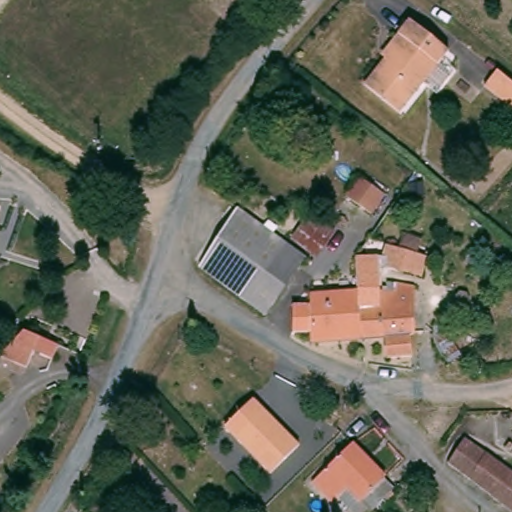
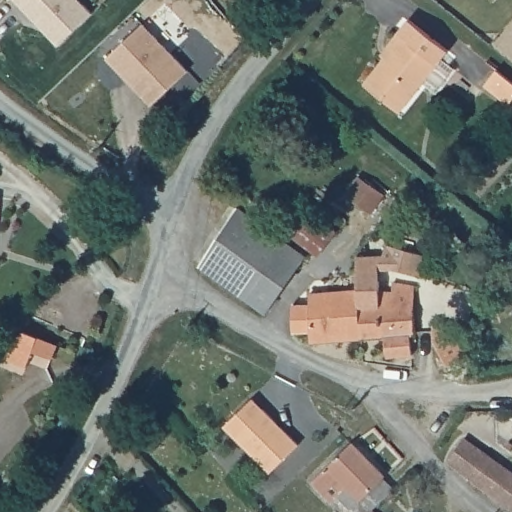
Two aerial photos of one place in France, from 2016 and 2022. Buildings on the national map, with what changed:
new [(89,10),(55,41),(16,0),(80,0),(89,10)]
unchanged [(398,35),(409,19),(453,52),(406,115),(368,86),(404,40),(398,35)]
new [(140,22),(184,69),(146,102),(103,55),(140,22)]
unchanged [(501,62),(512,71),(512,100),(487,81),(501,62)]
unchanged [(378,193),(360,214),(341,199),(352,173),(378,193)]
unchanged [(0,199),(0,195),(1,195),(0,199)]
unchanged [(276,237),(235,292),(203,268),(240,212),(276,237)]
unchanged [(336,235),(319,260),(292,241),(309,217),(336,235)]
unchanged [(288,246),(248,302),(235,292),(276,237),(288,246)]
unchanged [(414,283),(379,281),(378,292),(412,288),(426,355),(395,362),(390,338),(369,341),(362,307),(361,303),(360,296),(352,251),(358,244),(372,256),(374,256),(379,257),(415,257),(414,283)]
unchanged [(308,260),(268,317),(248,302),(288,246),(308,260)]
unchanged [(313,319),(312,309),(361,303),(362,307),(369,341),(318,348),(317,337),(300,337),(299,320),(313,319)]
unchanged [(53,341),(44,356),(36,351),(25,365),(1,351),(28,326),(53,341)]
unchanged [(301,443),(272,469),(228,425),(256,397),(301,443)]
unchanged [(406,488),(375,512),(358,512),(341,491),(337,495),(320,476),(364,438),(406,488)]
unchanged [(458,466),(475,441),(512,466),(512,508),(456,470),(458,466)]

